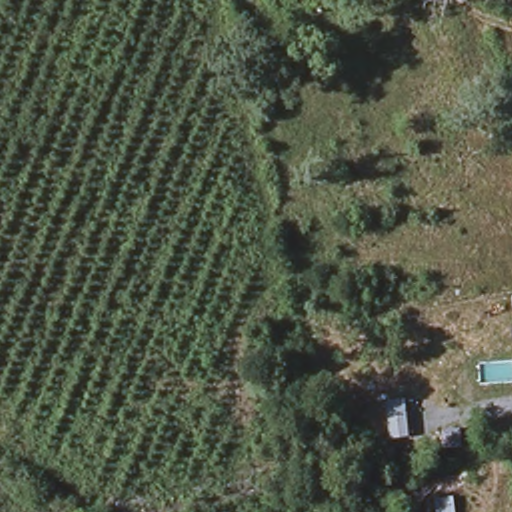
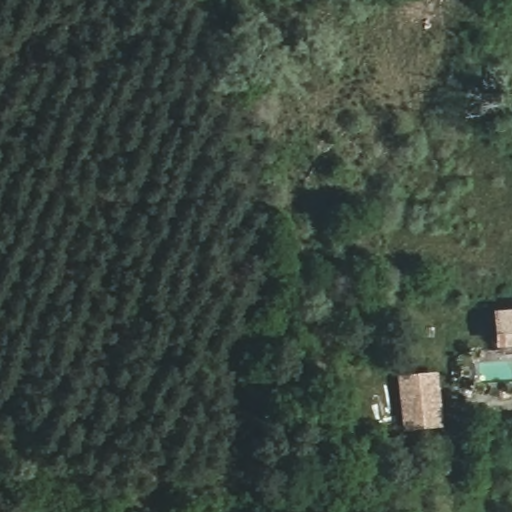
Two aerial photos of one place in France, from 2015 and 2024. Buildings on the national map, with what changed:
new [(493,349),(490,313),(512,311),(512,348),(493,349)]
new [(442,427),(403,432),(397,378),(437,373),(442,427)]
unchanged [(436,512),(435,497),(452,495),(455,512),(436,512)]

